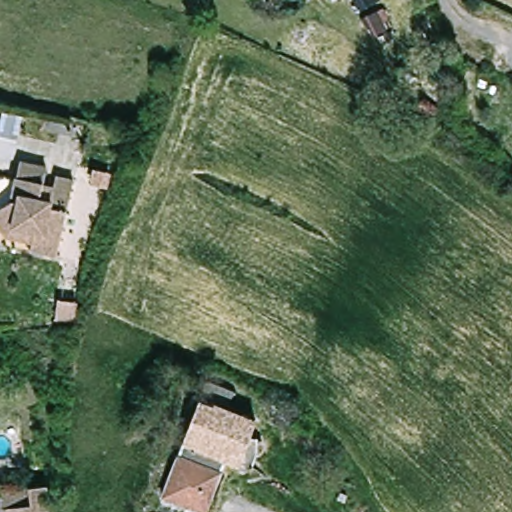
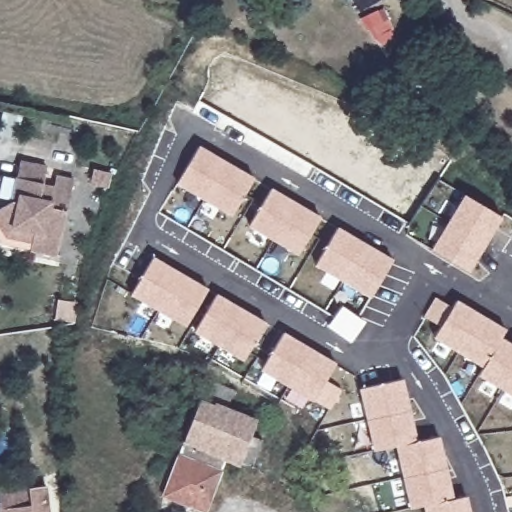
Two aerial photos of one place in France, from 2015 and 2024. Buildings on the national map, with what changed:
new [(180,184),(200,150),(251,180),(231,213),(180,184)]
unchanged [(0,218),(1,218),(12,208),(16,185),(19,168),(45,173),(42,190),(41,198),(53,200),(57,181),(73,184),(60,260),(34,256),(35,249),(6,244),(0,236),(0,218)]
new [(252,225),(274,189),(320,217),(302,252),(252,225)]
new [(466,196),(499,216),(467,269),(434,250),(466,196)]
new [(394,261),(373,295),(317,265),(338,230),(394,261)]
new [(131,294),(154,256),(209,288),(186,327),(131,294)]
new [(194,331),(218,294),(267,322),(244,361),(194,331)]
new [(500,340),(494,329),(460,309),(441,340),(435,337),(441,326),(424,317),(436,297),(454,306),(457,299),(507,329),(502,336),(512,342),(512,347),(500,340)]
new [(512,347),(512,393),(479,374),(484,366),(441,340),(460,309),(494,329),(500,340),(512,347)]
new [(336,363),(314,400),(263,371),(285,333),(336,363)]
new [(418,441),(440,435),(455,498),(468,495),(471,512),(425,512),(424,506),(411,509),(396,446),(374,451),(359,389),(404,379),(418,441)]
unchanged [(209,380),(239,391),(232,409),(263,420),(258,436),(268,440),(258,468),(257,468),(245,463),(230,458),(211,510),(168,494),(187,443),(204,398),(209,380)]
unchanged [(35,489),(39,512),(3,512),(2,493),(35,489)]
unchanged [(333,499),(338,493),(344,497),(340,503),(333,499)]

